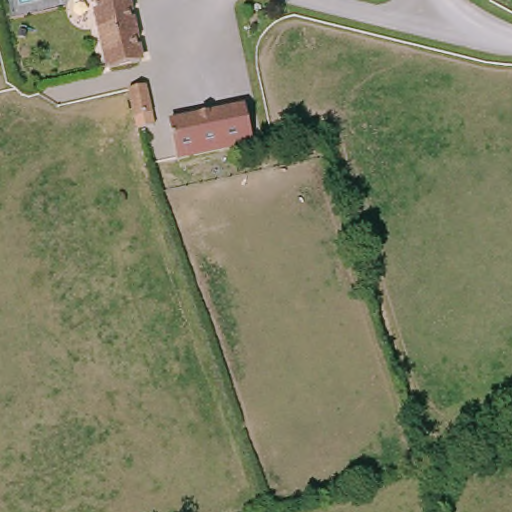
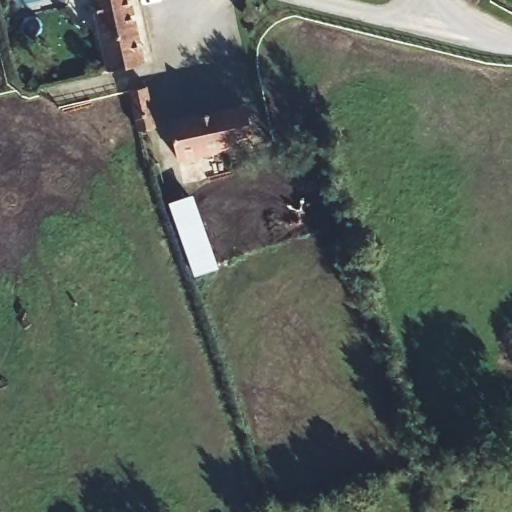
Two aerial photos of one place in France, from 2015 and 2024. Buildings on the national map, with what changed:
unchanged [(112,70),(112,69),(97,0),(129,0),(143,63),(112,70)]
unchanged [(214,152),(179,160),(168,121),(175,120),(245,106),(249,131),(251,144),(214,152)]
new [(219,266),(195,275),(168,203),(193,194),(219,266)]

